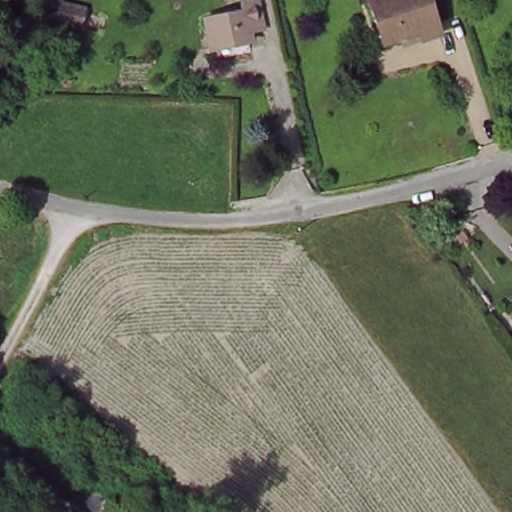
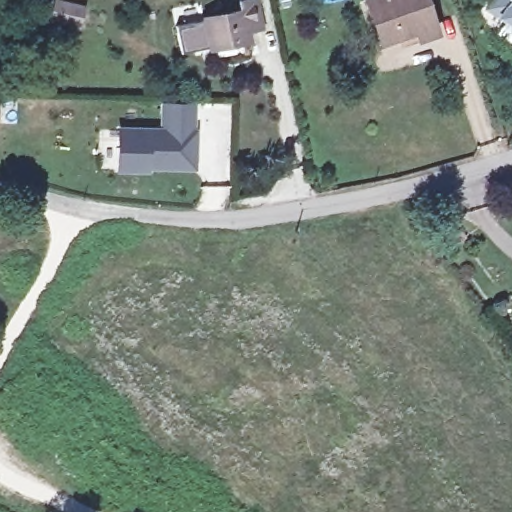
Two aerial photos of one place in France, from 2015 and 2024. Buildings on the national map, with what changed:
unchanged [(418,34),(382,46),(365,0),(425,0),(432,22),(436,33),(420,38),(418,34)]
new [(487,6),(492,0),(512,0),(512,22),(487,6)]
unchanged [(55,1),(83,8),(78,25),(50,18),(55,1)]
unchanged [(235,16),(234,8),(251,4),(256,30),(240,34),(242,44),(205,51),(200,25),(235,16)]
new [(117,126),(160,128),(160,103),(195,104),(195,128),(197,129),(195,171),(150,169),(149,173),(115,172),(117,126)]

